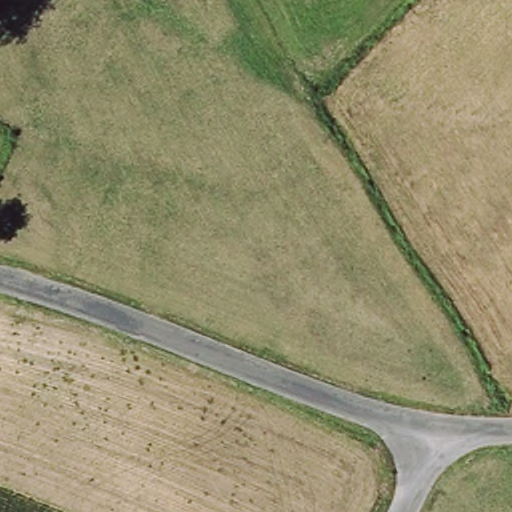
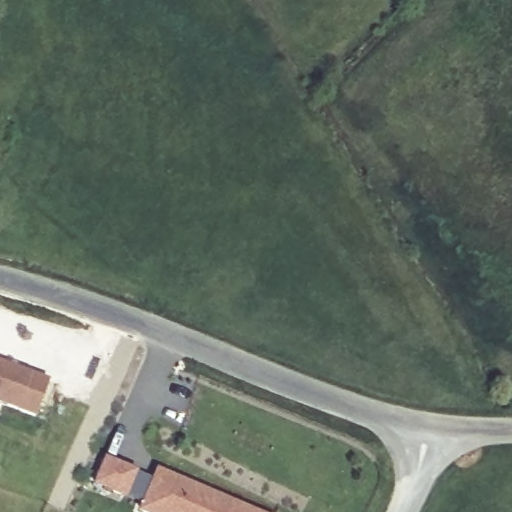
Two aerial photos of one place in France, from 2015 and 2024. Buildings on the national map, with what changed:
new [(49,380),(34,417),(0,405),(0,362),(49,380)]
new [(104,458),(133,471),(122,496),(93,482),(104,458)]
new [(207,491),(255,512),(146,512),(140,510),(157,470),(197,487),(207,491)]

